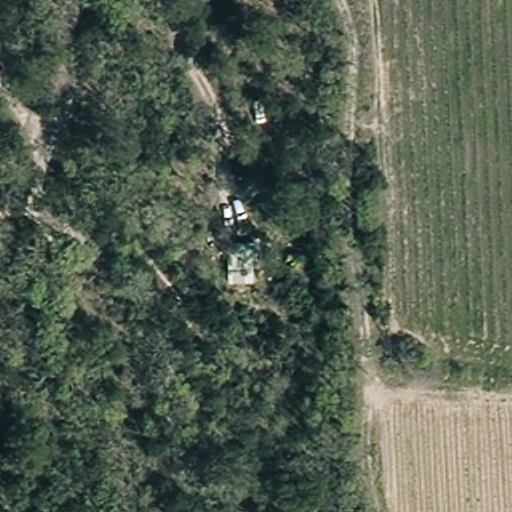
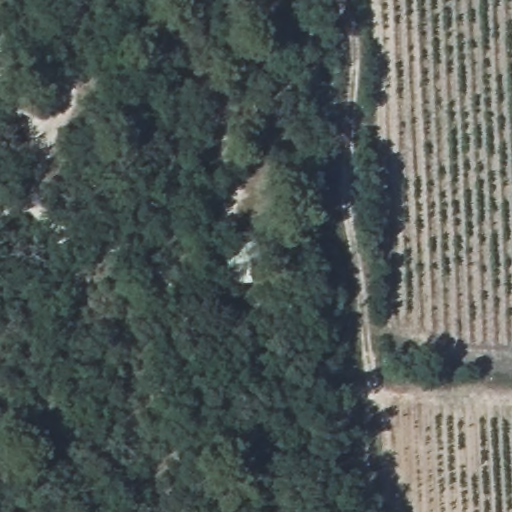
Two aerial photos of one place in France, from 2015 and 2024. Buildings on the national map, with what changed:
unchanged [(228,271),(227,243),(252,242),(252,271),(228,271)]

